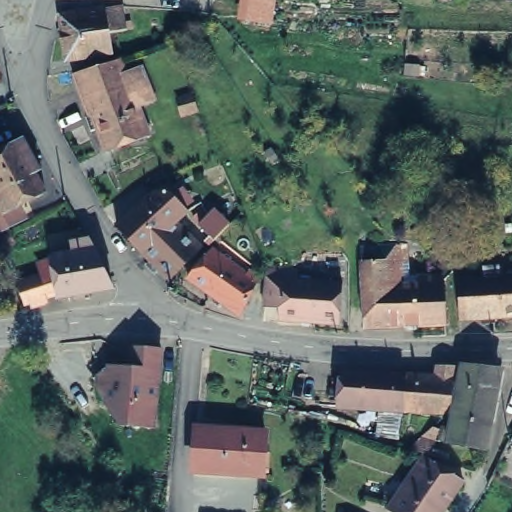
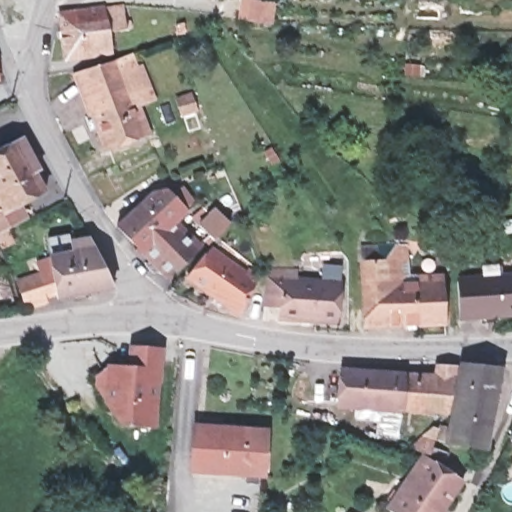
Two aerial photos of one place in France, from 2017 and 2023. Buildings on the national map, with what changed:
unchanged [(105,20),(107,41),(64,46),(57,6),(56,3),(75,0),(123,0),(125,17),(105,20)]
unchanged [(276,0),(272,26),(237,20),(240,0),(276,0)]
unchanged [(125,49),(143,120),(150,120),(151,126),(102,140),(81,61),(125,49)]
unchanged [(0,136),(11,130),(37,181),(7,198),(15,209),(1,216),(5,223),(0,225),(0,136)]
unchanged [(206,235),(203,232),(208,229),(190,210),(200,201),(206,207),(232,184),(240,204),(237,207),(206,235)]
unchanged [(155,189),(169,187),(188,208),(178,216),(202,241),(169,272),(120,219),(155,189)]
unchanged [(20,273),(58,262),(55,250),(70,247),(66,238),(90,230),(102,251),(115,278),(60,292),(57,288),(24,297),(20,273)]
unchanged [(392,256),(388,255),(388,275),(442,273),(445,312),(364,316),(364,239),(388,238),(392,238),(392,256)]
unchanged [(191,274),(211,244),(250,266),(253,262),(260,267),(242,306),(191,274)]
unchanged [(269,260),(295,262),(296,266),(300,266),(301,271),(342,274),(339,314),(278,309),(280,299),(266,297),(269,266),(269,260)]
unchanged [(512,266),(512,306),(456,312),(455,271),(512,266)]
unchanged [(157,377),(156,422),(124,421),(108,402),(94,383),(91,379),(107,365),(110,365),(130,366),(130,345),(160,346),(159,377),(157,377)]
unchanged [(437,369),(439,359),(457,359),(451,401),(448,404),(405,400),(408,368),(437,369)]
unchanged [(498,367),(486,446),(443,437),(444,422),(453,423),(459,393),(465,362),(498,367)]
unchanged [(347,365),(408,368),(405,400),(405,403),(342,400),(343,364),(347,365)]
unchanged [(263,420),(262,462),(194,460),(195,417),(263,420)]
unchanged [(466,479),(444,512),(398,512),(392,508),(429,456),(466,479)]

